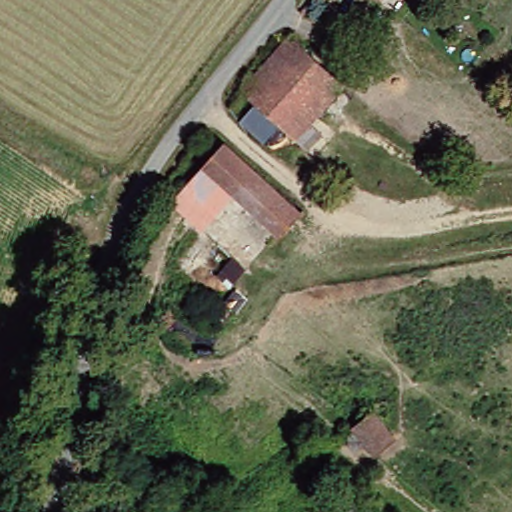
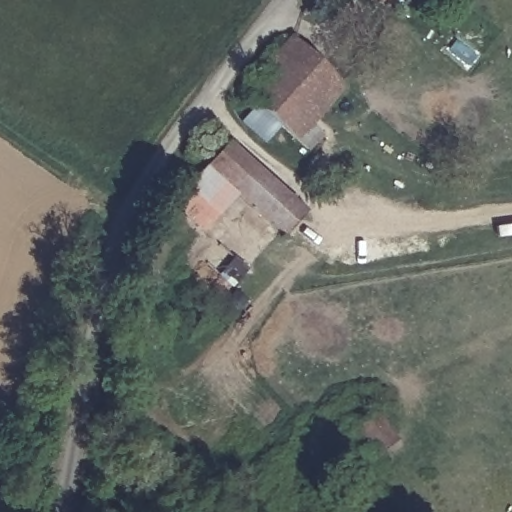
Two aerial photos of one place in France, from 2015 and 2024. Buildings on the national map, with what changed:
unchanged [(401,14),(386,1),(385,0),(414,0),(413,1),(404,12),(401,14)]
unchanged [(305,144),(290,130),(277,117),(263,131),(241,111),(255,96),(243,85),(299,26),(346,71),(303,116),(318,131),(305,144)]
unchanged [(226,145),(301,215),(279,240),(234,195),(205,167),(226,145)]
unchanged [(171,204),(205,167),(234,195),(199,231),(171,204)]
unchanged [(383,452),(358,426),(372,412),(397,439),(383,452)]

